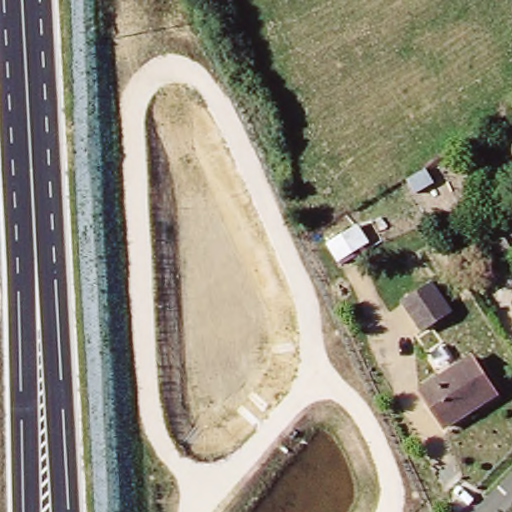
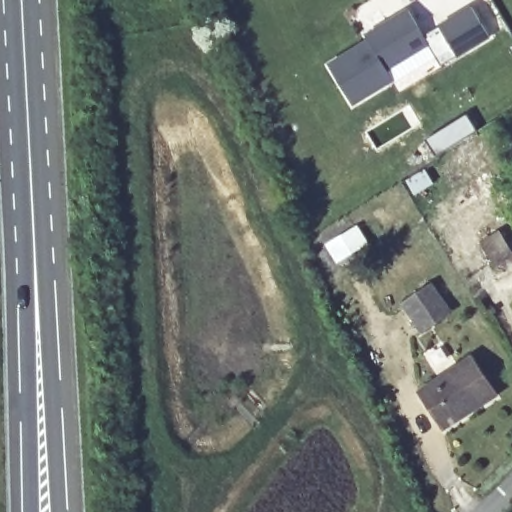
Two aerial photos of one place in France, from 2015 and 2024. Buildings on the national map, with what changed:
new [(369,36),(411,11),(420,25),(426,37),(474,9),(492,39),(443,68),(430,46),(389,71),(395,81),(395,82),(355,106),(330,66),(371,42),(369,36)]
new [(430,46),(443,68),(401,94),(395,82),(395,81),(389,71),(430,46)]
unchanged [(490,265),(479,242),(500,231),(511,255),(490,265)]
unchanged [(398,305),(428,285),(446,311),(416,332),(398,305)]
unchanged [(490,395),(440,428),(417,392),(467,358),(490,395)]

